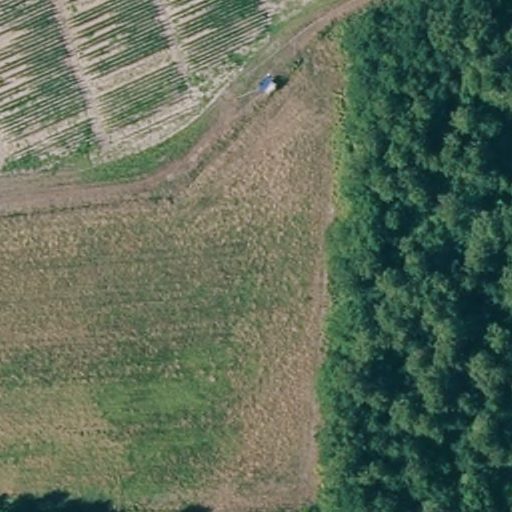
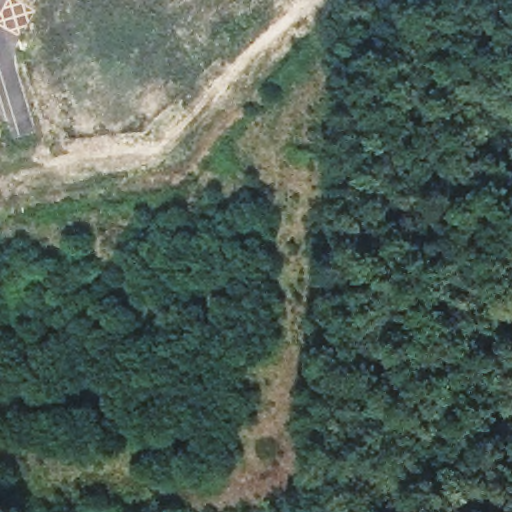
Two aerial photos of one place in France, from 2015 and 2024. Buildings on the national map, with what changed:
[]

